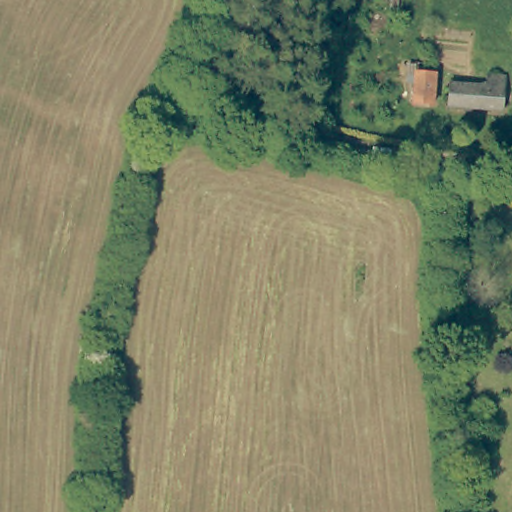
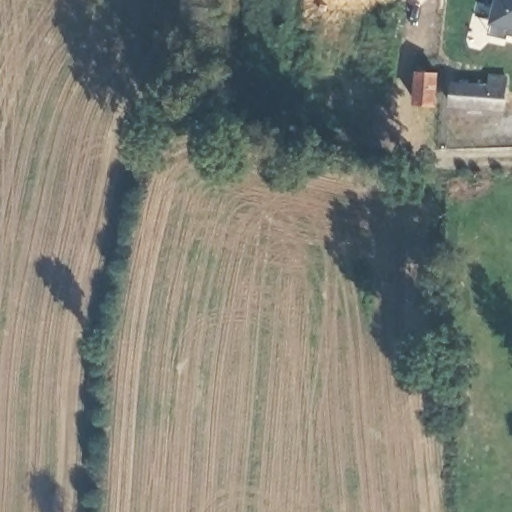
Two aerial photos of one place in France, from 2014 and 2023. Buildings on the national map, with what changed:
new [(507,34),(507,38),(488,34),(492,24),(490,24),(495,5),(488,3),(489,0),(512,0),(512,35),(507,34)]
unchanged [(406,69),(412,69),(433,69),(432,102),(410,102),(406,102),(406,69)]
unchanged [(483,76),(500,76),(500,111),(442,112),(442,83),(483,82),(483,76)]

